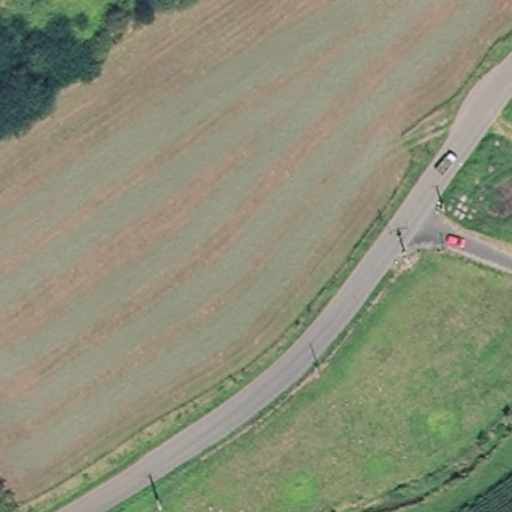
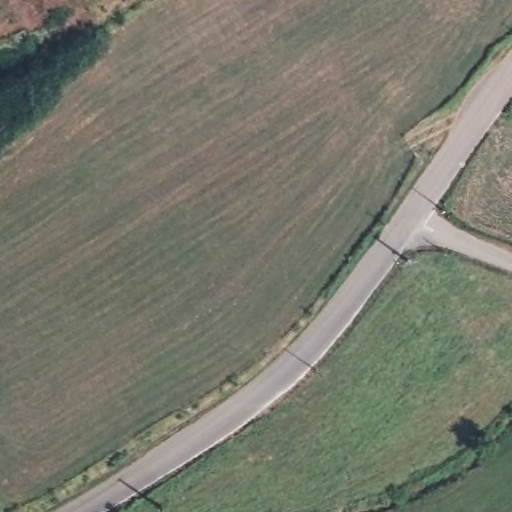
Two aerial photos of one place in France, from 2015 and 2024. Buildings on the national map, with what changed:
unchanged [(427,259),(403,261),(408,253),(415,247),(423,244),(433,244),(439,246),(427,252),(427,259)]

